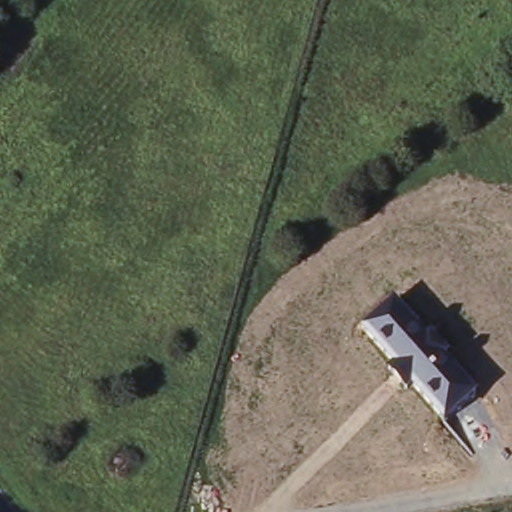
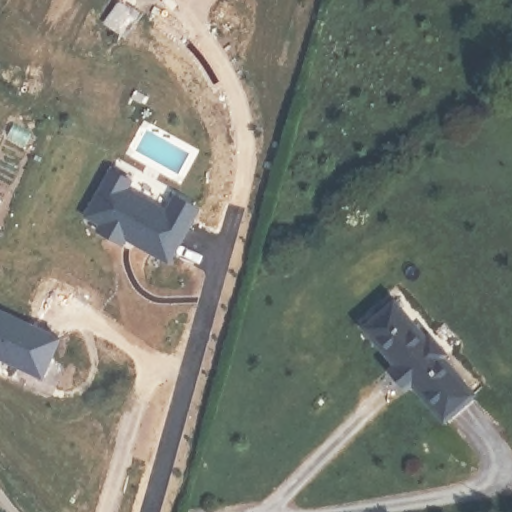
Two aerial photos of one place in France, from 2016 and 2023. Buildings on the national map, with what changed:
new [(118,160),(195,208),(162,263),(84,218),(118,160)]
new [(65,329),(34,373),(0,351),(0,293),(4,287),(65,329)]
unchanged [(443,423),(411,387),(405,391),(388,368),(393,363),(362,328),(394,299),(428,334),(431,332),(451,355),(448,358),(477,392),(443,423)]

